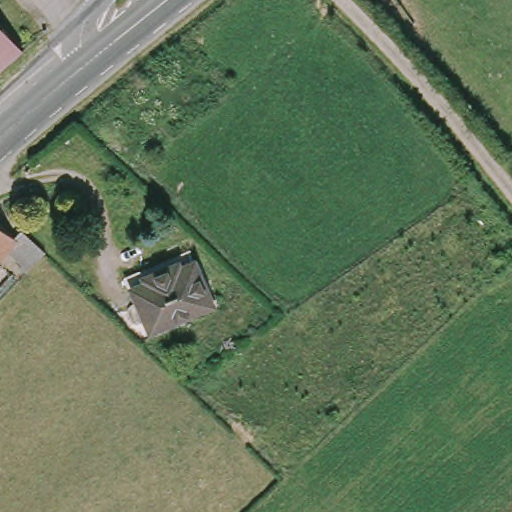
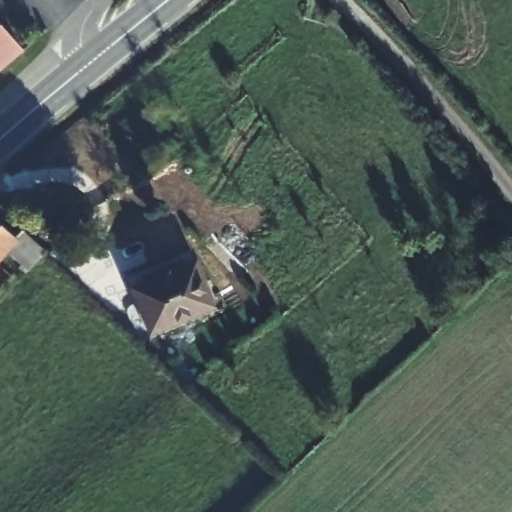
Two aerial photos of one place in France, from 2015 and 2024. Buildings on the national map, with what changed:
unchanged [(0,72),(0,18),(26,49),(0,72)]
unchanged [(3,250),(0,252),(0,226),(14,240),(21,231),(48,257),(26,279),(19,273),(23,268),(3,250)]
unchanged [(220,316),(158,338),(137,283),(199,261),(220,316)]

